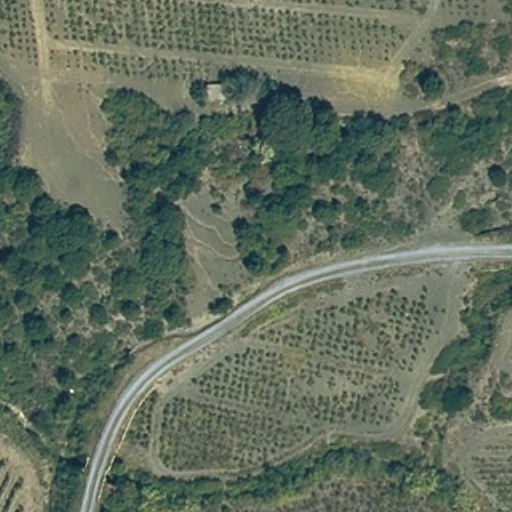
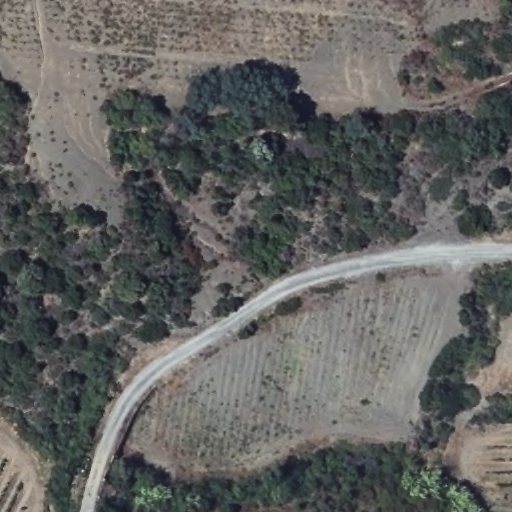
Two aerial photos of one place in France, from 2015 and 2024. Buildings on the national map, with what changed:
unchanged [(204,85),(226,85),(227,100),(205,100),(204,85)]

